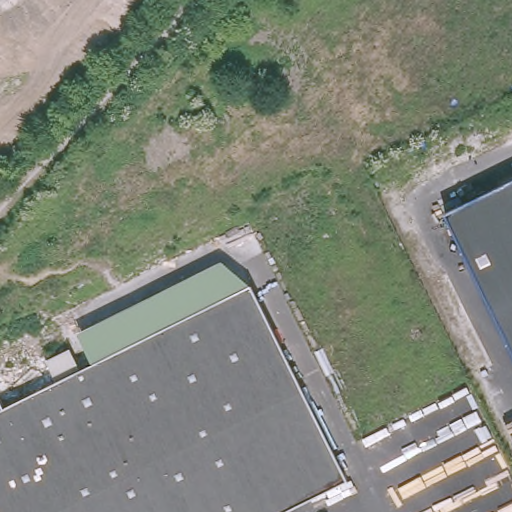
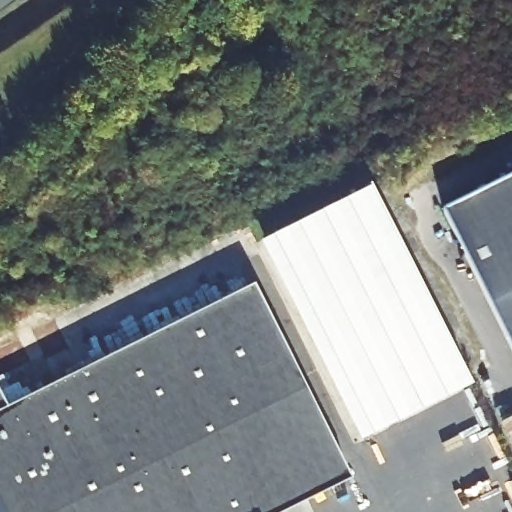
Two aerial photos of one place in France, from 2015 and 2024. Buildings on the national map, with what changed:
unchanged [(446,213),(512,180),(512,351),(446,213)]
new [(366,189),(466,385),(356,440),(257,243),(366,189)]
new [(220,261),(250,287),(95,363),(78,332),(220,261)]
unchanged [(262,311),(345,479),(278,512),(0,512),(0,411),(3,409),(250,287),(262,311)]
unchanged [(0,411),(0,402),(3,409),(0,411)]

